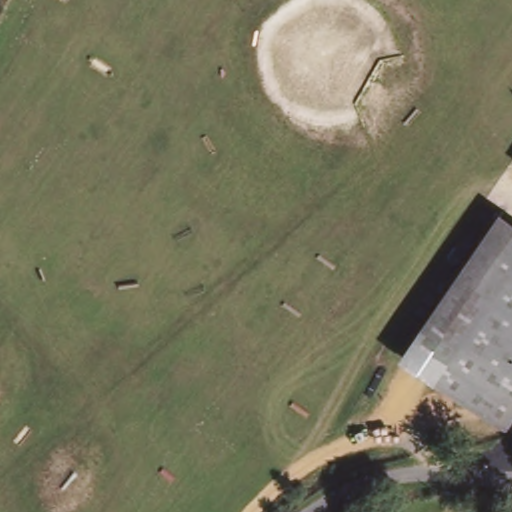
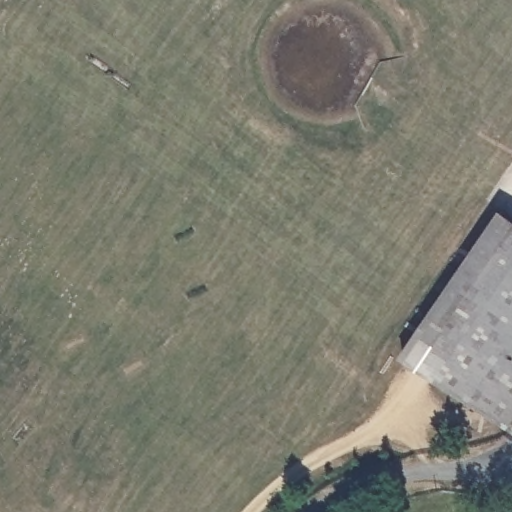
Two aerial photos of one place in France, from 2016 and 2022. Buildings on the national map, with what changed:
unchanged [(503,211),(512,217),(512,415),(504,426),(401,352),(413,335),(503,211)]

